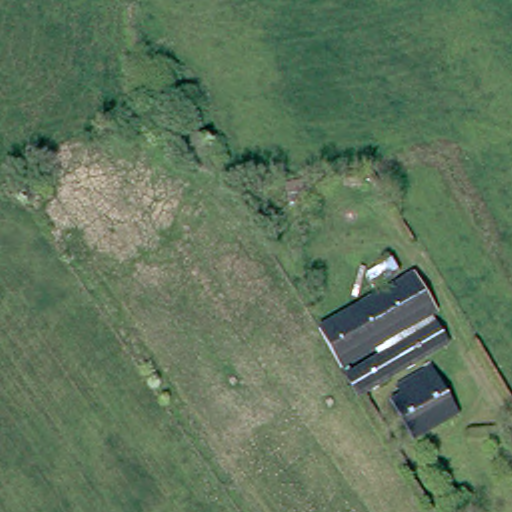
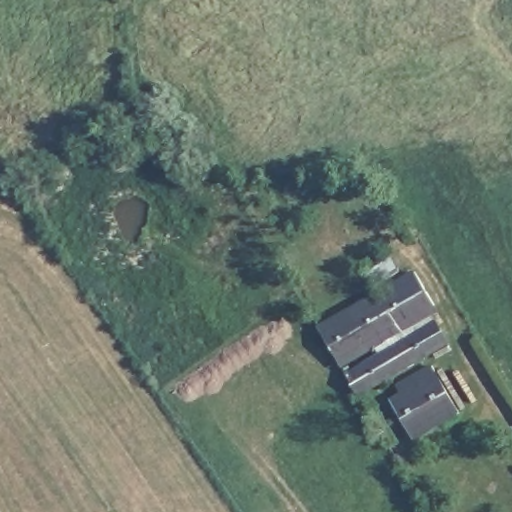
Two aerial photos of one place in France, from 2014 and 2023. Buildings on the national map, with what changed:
unchanged [(396,254),(404,267),(380,281),(372,267),(396,254)]
unchanged [(420,267),(439,301),(432,304),(436,309),(346,362),(323,323),(420,267)]
unchanged [(363,391),(350,369),(440,317),(453,339),(363,391)]
unchanged [(390,396),(400,389),(396,381),(431,361),(459,408),(413,435),(390,396)]

